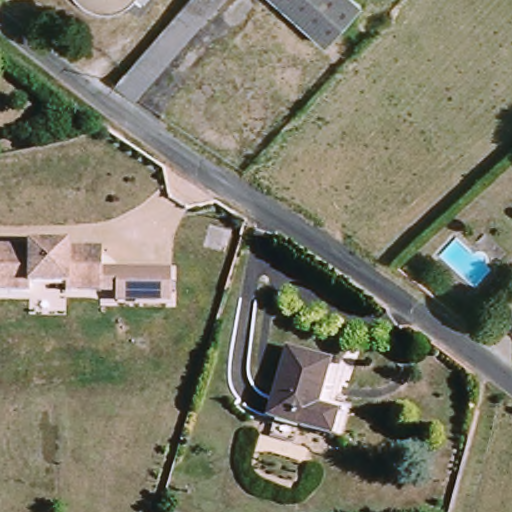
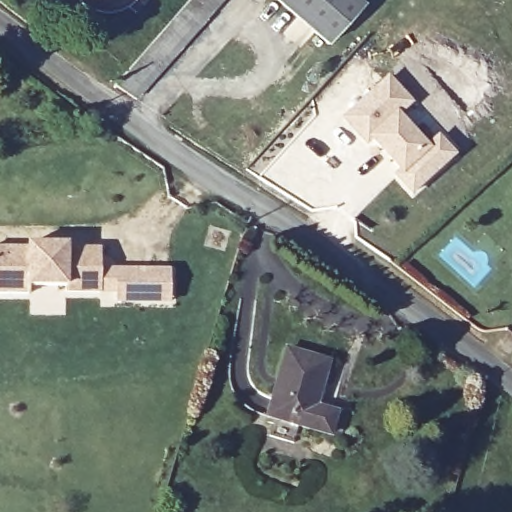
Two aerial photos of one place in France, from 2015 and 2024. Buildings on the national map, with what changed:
unchanged [(206,22),(137,102),(115,89),(193,0),(233,0),(210,26),(206,22)]
unchanged [(329,45),(278,0),(355,0),(362,7),(329,45)]
new [(394,174),(399,169),(372,139),(366,144),(344,117),(389,75),(415,103),(402,117),(427,145),(439,134),(458,155),(413,194),(394,174)]
unchanged [(27,247),(28,242),(52,244),(68,245),(68,249),(101,249),(101,270),(115,270),(115,293),(101,293),(67,292),(67,287),(28,285),(29,293),(0,292),(0,246),(27,247)]
unchanged [(272,415),(290,355),(336,368),(325,406),(344,412),(337,435),(272,415)]

